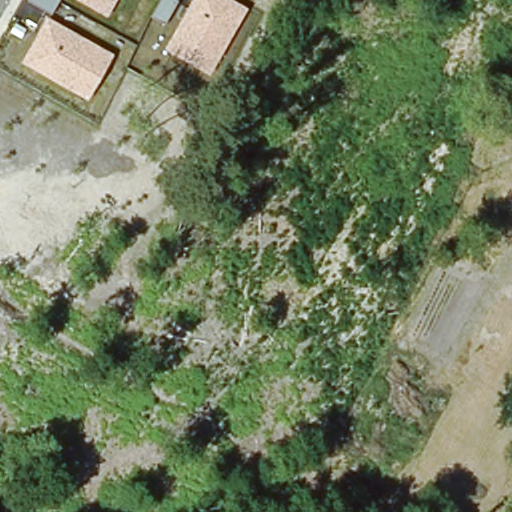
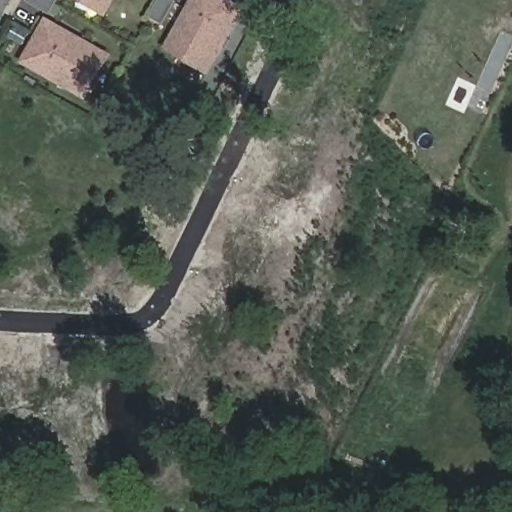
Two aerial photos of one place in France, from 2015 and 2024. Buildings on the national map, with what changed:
unchanged [(53,15),(27,1),(28,0),(60,0),(53,15)]
unchanged [(108,17),(76,0),(118,0),(108,17)]
unchanged [(212,77),(163,49),(191,0),(233,0),(248,8),(212,77)]
unchanged [(87,100),(21,62),(46,16),(114,54),(87,100)]

